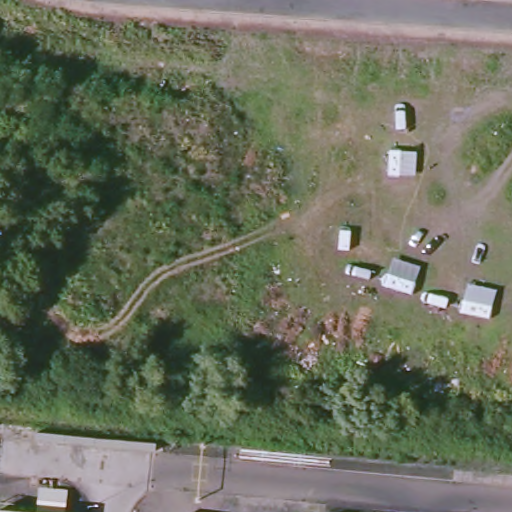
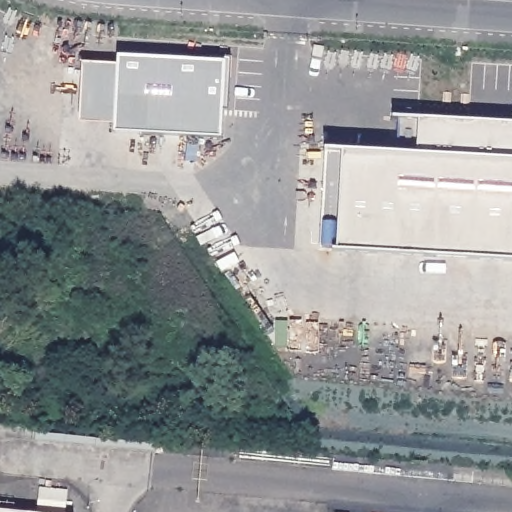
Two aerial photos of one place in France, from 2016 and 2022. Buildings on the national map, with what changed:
new [(227,108),(223,107),(221,140),(112,134),(112,124),(78,124),(82,63),(117,64),(117,56),(120,56),(121,51),(230,59),(227,108)]
new [(318,250),(325,150),(395,155),(397,119),(512,125),(512,263),(332,252),(318,250)]
unchanged [(14,512),(0,512),(0,510),(14,512)]

